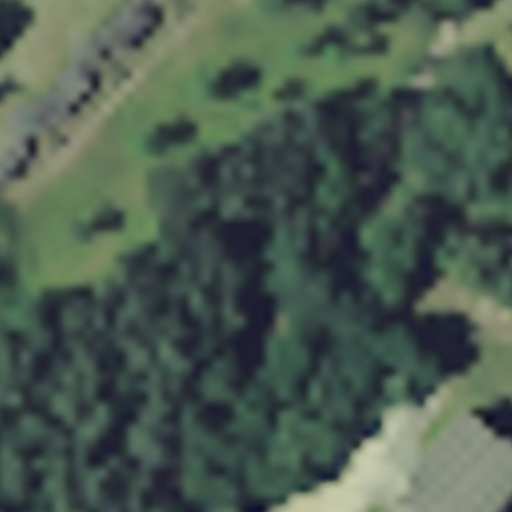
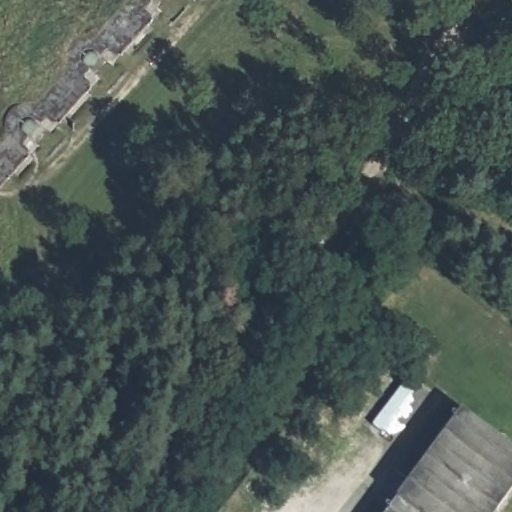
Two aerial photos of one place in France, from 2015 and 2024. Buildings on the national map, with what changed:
unchanged [(512,446),(512,512),(389,512),(465,407),(512,446)]

